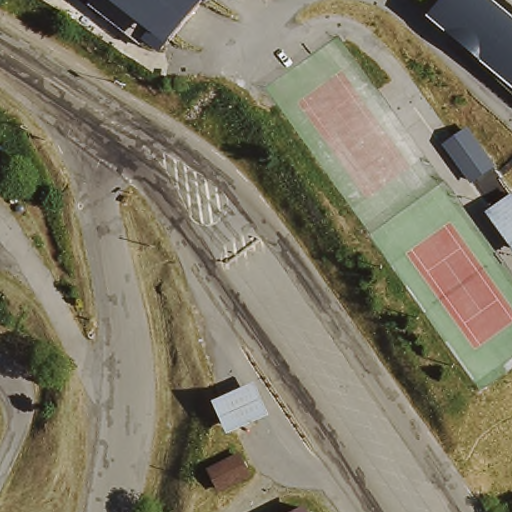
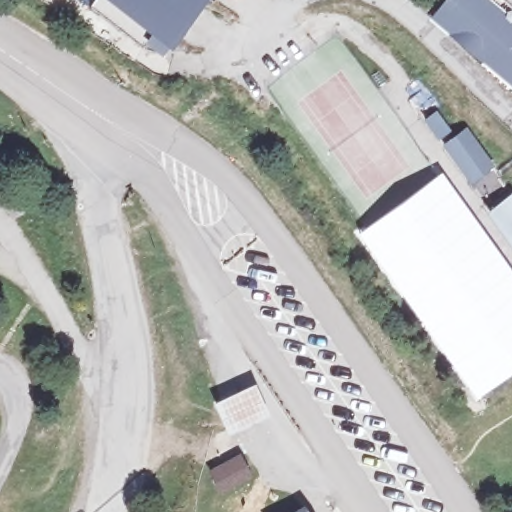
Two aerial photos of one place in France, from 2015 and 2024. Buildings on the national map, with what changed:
unchanged [(184,36),(168,26),(156,45),(100,7),(105,0),(207,0),(184,36)]
unchanged [(465,130),(490,163),(469,177),(445,144),(465,130)]
unchanged [(11,152),(21,165),(6,177),(3,180),(0,175),(0,139),(11,152)]
new [(512,270),(512,369),(474,396),(355,232),(441,170),(512,270)]
unchanged [(512,238),(495,213),(512,200),(512,238)]
unchanged [(247,398),(255,415),(232,426),(224,409),(247,398)]
unchanged [(213,470),(242,456),(252,476),(223,490),(213,470)]
unchanged [(301,512),(298,512),(300,510),(301,512)]

